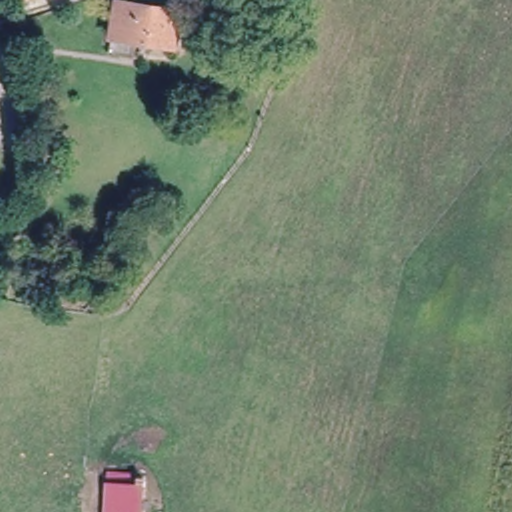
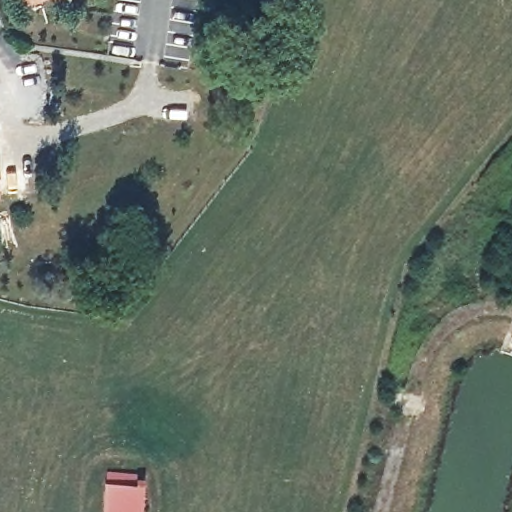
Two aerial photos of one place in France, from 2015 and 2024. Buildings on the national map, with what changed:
unchanged [(28,0),(37,0),(29,2),(28,0)]
demolished [(144,46),(110,38),(117,0),(152,8),(144,46)]
demolished [(152,8),(179,14),(171,51),(144,46),(152,8)]
unchanged [(111,482),(139,485),(137,512),(124,511),(123,512),(107,512),(107,510),(111,482)]

